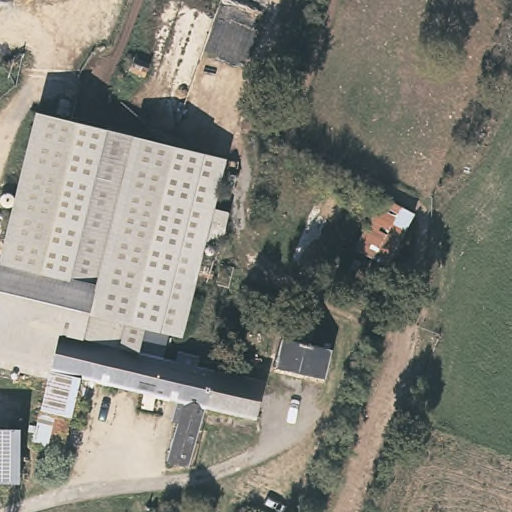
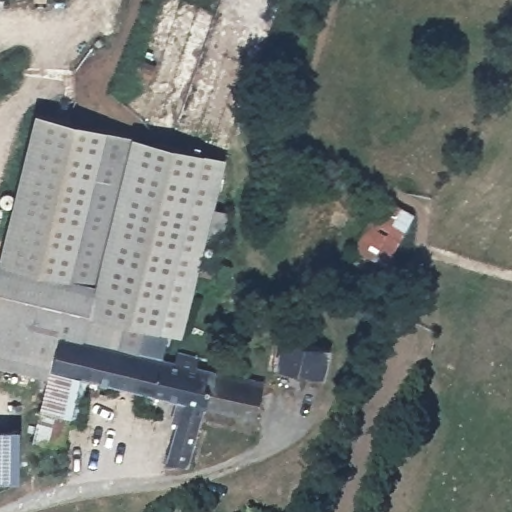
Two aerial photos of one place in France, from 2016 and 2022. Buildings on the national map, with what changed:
unchanged [(0,252),(32,114),(219,159),(207,208),(223,212),(222,217),(215,246),(212,246),(199,242),(185,298),(170,360),(159,357),(163,336),(144,331),(139,352),(52,330),(38,387),(0,378),(0,252)]
unchanged [(386,264),(352,243),(383,190),(416,209),(386,264)]
unchanged [(315,334),(313,345),(331,349),(325,377),(282,369),(289,327),(315,334)]
unchanged [(203,403),(188,466),(166,461),(175,424),(169,423),(175,396),(77,374),(58,447),(25,439),(38,387),(52,330),(139,352),(144,331),(163,336),(159,357),(170,360),(172,360),(174,349),(197,354),(195,366),(227,374),(219,407),(203,403)]
unchanged [(261,381),(254,416),(219,407),(227,374),(261,381)]
unchanged [(17,486),(0,486),(0,428),(19,429),(17,486)]

